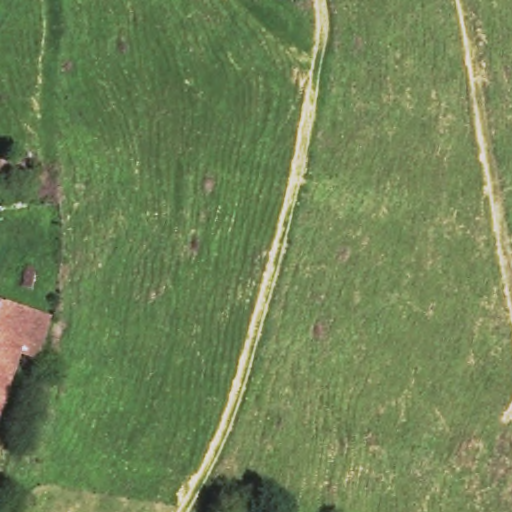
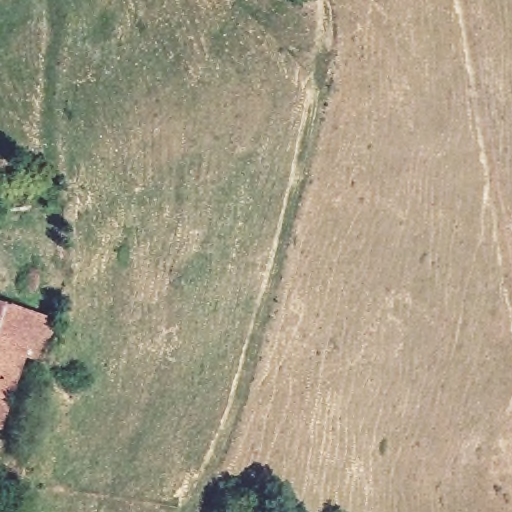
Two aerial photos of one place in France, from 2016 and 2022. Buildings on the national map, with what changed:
unchanged [(52,325),(41,376),(23,372),(0,439),(0,308),(52,325)]

